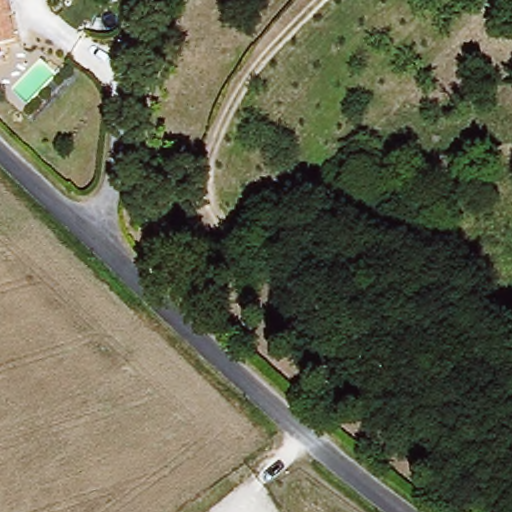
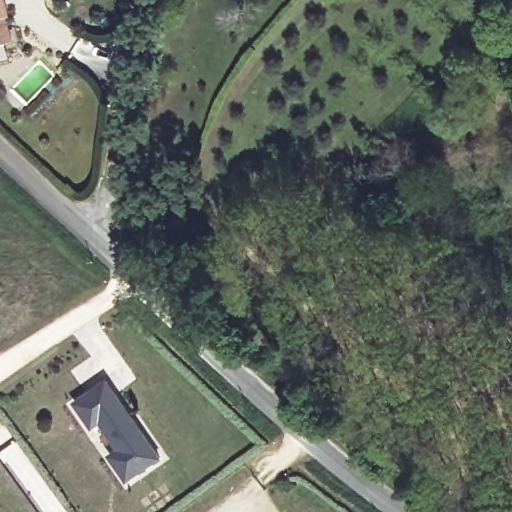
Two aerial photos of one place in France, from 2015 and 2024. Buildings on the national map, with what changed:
unchanged [(10,16),(7,17),(12,42),(0,44),(0,0),(7,0),(10,16)]
new [(112,380),(122,393),(132,408),(138,418),(165,461),(132,484),(115,458),(123,452),(104,423),(95,430),(78,403),(92,393),(112,380)]

